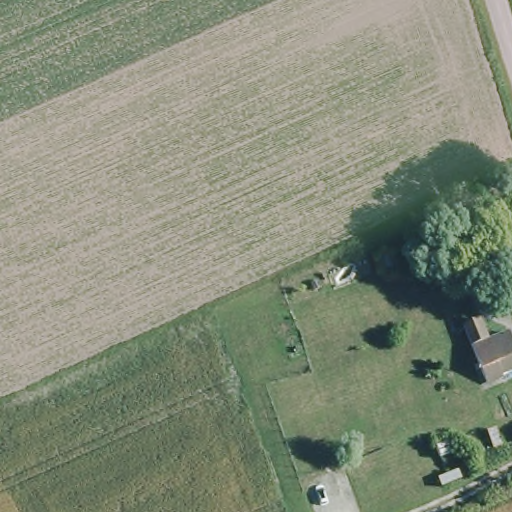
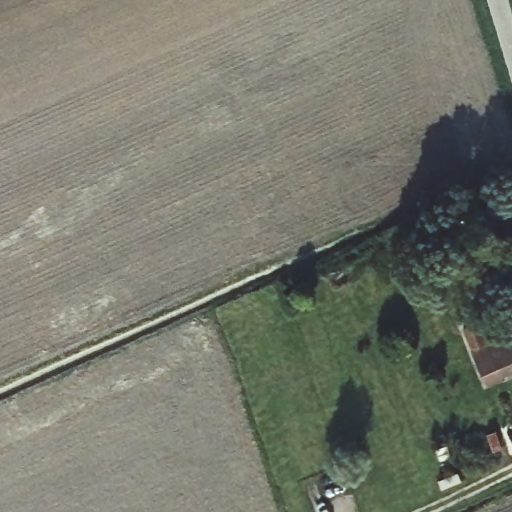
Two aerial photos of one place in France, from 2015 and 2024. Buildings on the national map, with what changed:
unchanged [(502,335),(510,349),(512,348),(512,370),(480,383),(456,327),(473,322),(482,343),(502,335)]

